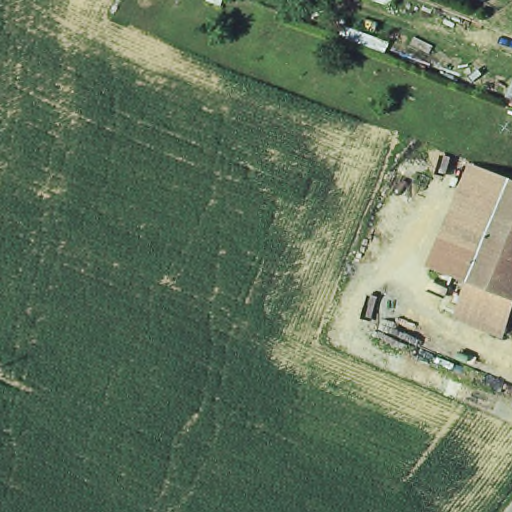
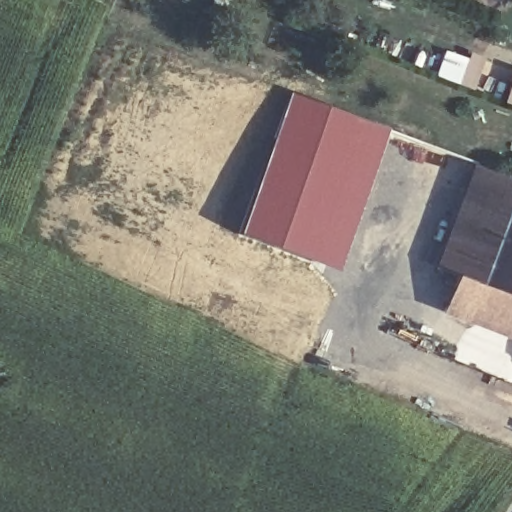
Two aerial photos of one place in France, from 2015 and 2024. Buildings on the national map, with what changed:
new [(287,90),(367,119),(390,129),(334,272),(235,233),(287,90)]
unchanged [(512,95),(512,102),(510,101),(512,95)]
unchanged [(473,167),(512,183),(512,186),(500,217),(472,284),(432,268),(473,167)]
unchanged [(500,217),(512,186),(512,300),(472,284),(500,217)]
unchanged [(512,318),(505,336),(459,317),(472,284),(512,300),(512,318)]

